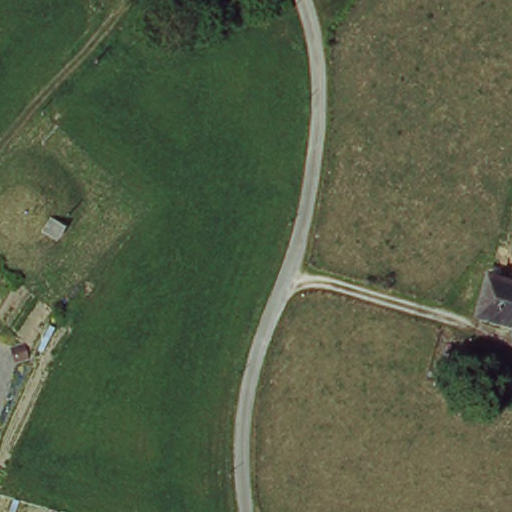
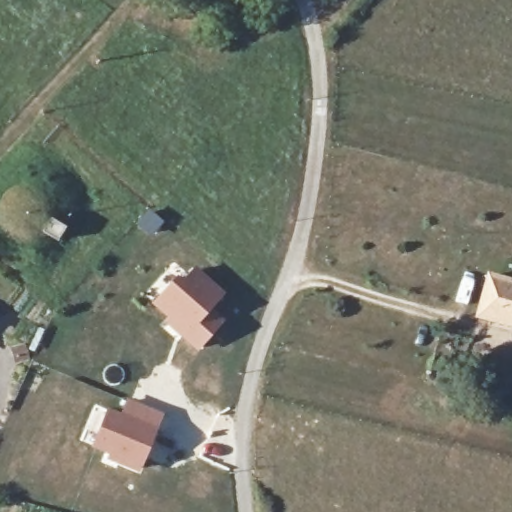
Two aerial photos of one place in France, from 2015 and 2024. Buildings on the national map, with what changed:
new [(176,276),(181,280),(195,266),(225,292),(210,309),(223,321),(199,350),(166,319),(169,316),(150,302),(176,276)]
unchanged [(478,307),(485,271),(512,277),(512,317),(478,307)]
new [(107,455),(90,448),(107,407),(121,413),(128,398),(163,413),(138,474),(105,460),(107,455)]

